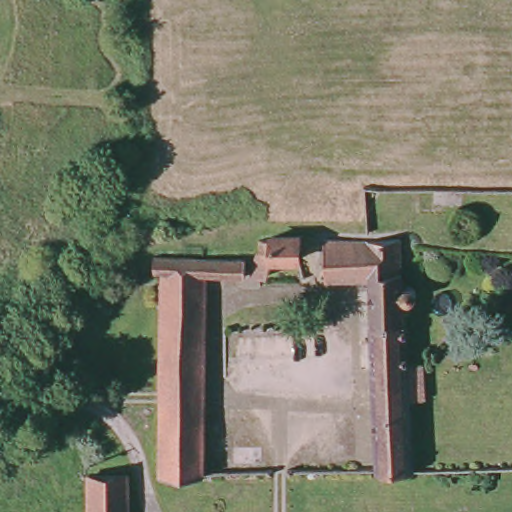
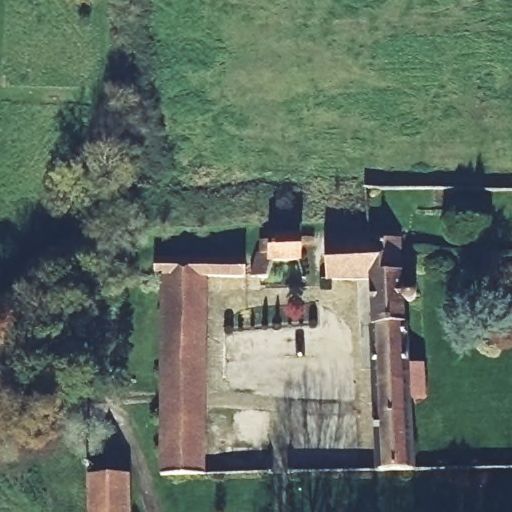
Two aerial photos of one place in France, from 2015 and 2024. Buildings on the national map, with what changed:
unchanged [(465,204),(421,204),(420,179),(465,178),(465,204)]
unchanged [(370,232),(402,231),(404,279),(407,278),(412,279),(415,282),(417,287),(416,290),(416,294),(413,296),(412,297),(409,298),(405,298),(406,356),(420,356),(420,361),(422,389),(409,389),(410,455),(417,455),(416,465),(376,466),(367,275),(327,274),(327,235),(370,232)]
unchanged [(265,235),(276,235),(276,232),(293,232),(304,232),(305,255),(277,255),(270,273),(252,273),(258,255),(259,248),(265,247),(265,235)]
unchanged [(164,268),(142,269),(140,253),(246,254),(246,274),(207,274),(205,369),(204,429),(219,428),(219,437),(219,453),(203,452),(202,472),(162,470),(163,412),(164,268)]
unchanged [(317,274),(305,275),(305,255),(317,254),(317,274)]
unchanged [(128,512),(88,512),(90,472),(128,473),(128,512)]

